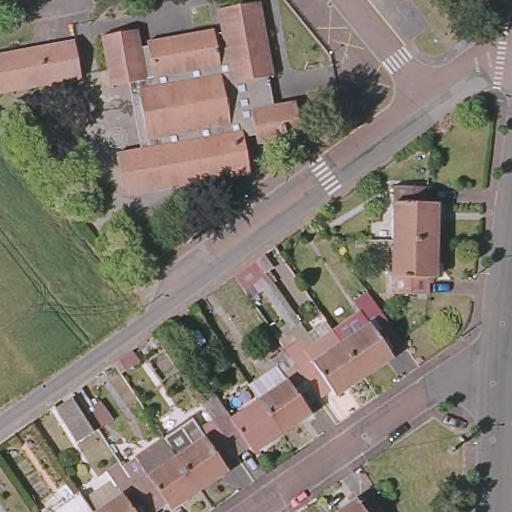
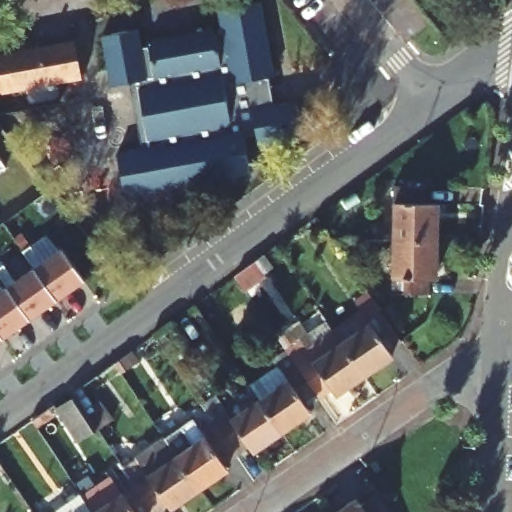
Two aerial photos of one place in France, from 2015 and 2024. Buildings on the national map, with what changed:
unchanged [(208,30),(210,39),(217,37),(211,11),(257,2),(273,75),(260,78),(265,105),(293,100),(300,134),(256,143),(252,129),(241,131),(250,172),(124,198),(115,154),(150,145),(136,79),(109,84),(98,38),(131,31),(135,52),(143,51),(142,42),(208,30)]
unchanged [(0,53),(73,37),(75,48),(81,77),(34,87),(0,94),(0,53)]
unchanged [(397,184),(430,185),(428,201),(437,201),(436,238),(395,236),(397,184)]
unchanged [(435,277),(427,278),(426,295),(392,292),(395,236),(436,238),(435,277)]
new [(75,254),(81,273),(0,334),(0,277),(52,239),(75,254)]
unchanged [(386,339),(390,346),(357,369),(325,322),(357,299),(361,305),(371,299),(395,333),(386,339)]
unchanged [(301,348),(297,342),(325,322),(357,369),(330,387),(326,383),(312,391),(288,356),(301,348)]
unchanged [(312,391),(305,396),(308,403),(276,424),(254,390),(286,368),(281,361),(288,356),(312,391)]
unchanged [(223,404),(226,409),(254,390),(276,424),(250,443),(247,439),(234,446),(210,412),(223,404)]
unchanged [(77,441),(55,409),(72,397),(95,429),(77,441)]
unchanged [(225,452),(227,459),(195,480),(172,446),(160,429),(191,408),(200,419),(210,412),(234,446),(225,452)]
unchanged [(160,429),(172,446),(195,480),(166,499),(165,495),(150,505),(125,469),(117,458),(160,429)]
unchanged [(106,487),(115,481),(105,466),(117,458),(125,469),(150,505),(140,511),(141,512),(95,512),(90,504),(84,495),(82,493),(101,480),(106,487)]
unchanged [(90,504),(95,512),(57,512),(84,495),(90,504)]
unchanged [(362,503),(373,495),(386,512),(342,512),(360,500),(362,503)]
unchanged [(50,512),(39,512),(46,507),(50,512)]

